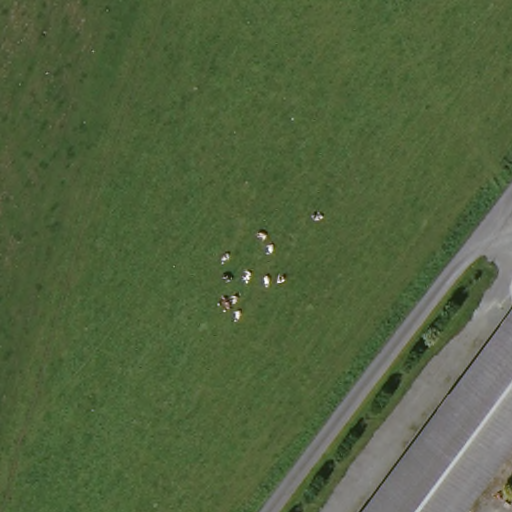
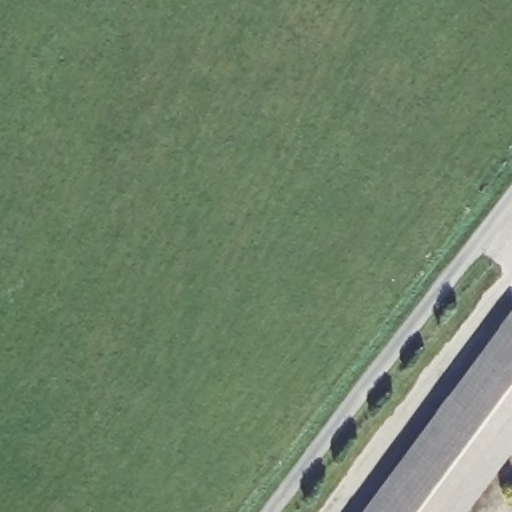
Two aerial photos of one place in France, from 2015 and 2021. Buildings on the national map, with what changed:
unchanged [(512,312),(512,446),(463,512),(363,512),(511,312),(512,312)]

